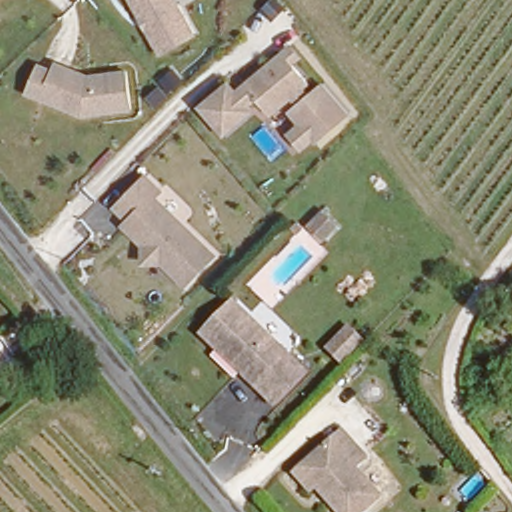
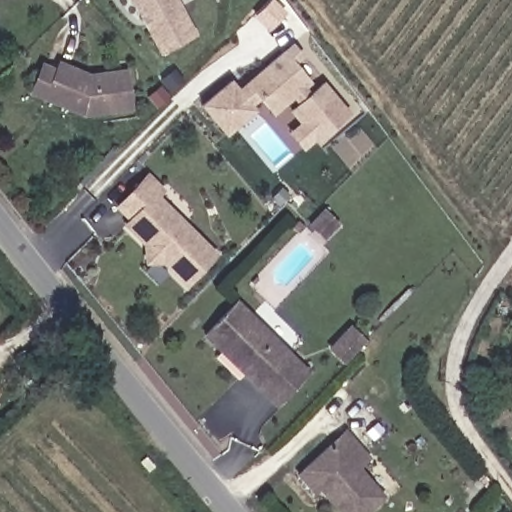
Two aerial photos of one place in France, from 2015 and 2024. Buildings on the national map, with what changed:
unchanged [(160,52),(129,0),(177,0),(196,34),(160,52)]
unchanged [(303,56),(294,65),(310,83),(304,88),(307,91),(321,81),(350,113),(315,142),(313,140),(301,149),(287,131),(296,121),(288,111),(294,103),(290,98),(272,113),(261,99),(252,104),(254,108),(222,134),(199,106),(230,79),(238,86),(291,42),(303,56)]
unchanged [(130,112),(81,116),(26,94),(40,63),(54,66),(57,60),(87,73),(125,69),(130,112)]
unchanged [(163,190),(157,196),(218,255),(185,285),(162,264),(141,263),(142,240),(123,223),(125,220),(114,206),(146,174),(163,190)]
unchanged [(312,228),(326,213),(340,227),(325,241),(312,228)]
unchanged [(202,340),(235,306),(279,353),(282,356),(249,386),(234,371),(202,340)]
unchanged [(326,349),(348,329),(363,342),(340,363),(326,349)]
unchanged [(300,373),(268,404),(249,386),(282,356),(300,373)]
unchanged [(290,478),(299,470),(340,433),(365,458),(355,467),(380,494),(360,512),(338,512),(312,485),(305,493),(290,478)]

